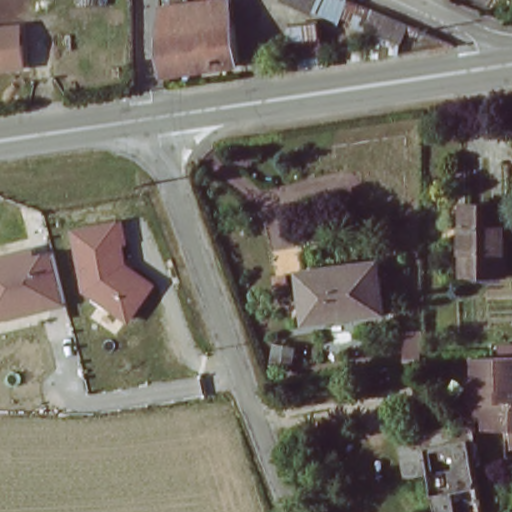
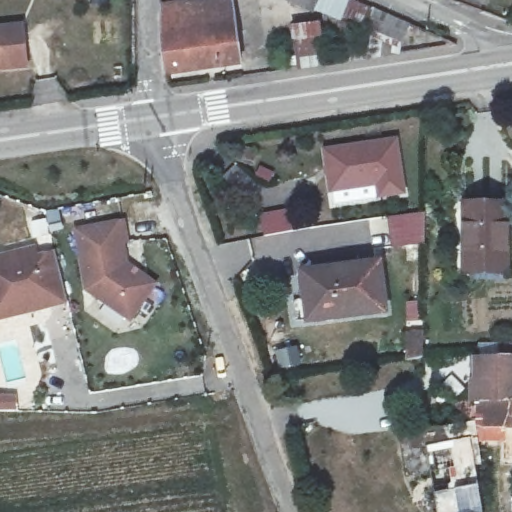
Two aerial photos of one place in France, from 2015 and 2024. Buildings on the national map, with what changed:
unchanged [(159,6),(206,0),(235,0),(238,22),(161,32),(159,6)]
unchanged [(398,55),(339,61),(337,44),(369,42),(368,31),(313,12),(287,0),(354,0),(410,24),(398,55)]
unchanged [(245,62),(165,73),(161,32),(238,22),(245,62)]
unchanged [(8,31),(25,29),(28,69),(10,71),(0,72),(0,32),(8,31)]
new [(391,136),(399,186),(376,190),(374,178),(328,185),(322,146),(391,136)]
unchanged [(509,205),(509,269),(462,268),(462,203),(509,205)]
unchanged [(127,219),(130,242),(125,244),(130,263),(158,282),(133,321),(87,286),(77,228),(127,219)]
unchanged [(0,324),(0,261),(62,246),(74,303),(0,324)]
unchanged [(379,260),(385,308),(307,319),(301,270),(379,260)]
unchanged [(486,397),(487,376),(473,376),(474,361),(497,361),(497,352),(512,353),(512,421),(485,420),(486,397)]
unchanged [(471,420),(473,420),(482,463),(479,464),(474,465),(483,512),(439,512),(431,476),(409,479),(400,434),(471,420)]

